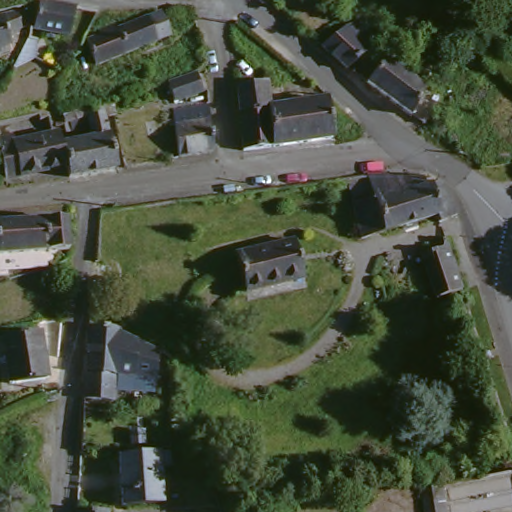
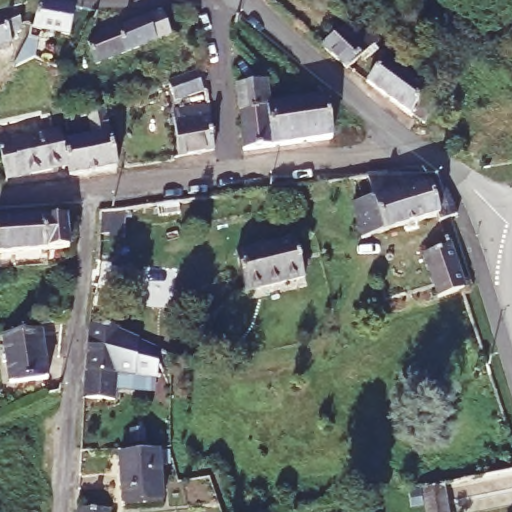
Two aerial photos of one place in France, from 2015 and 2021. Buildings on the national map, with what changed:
unchanged [(261,0),(260,1),(259,0),(261,0)]
unchanged [(24,51),(27,38),(31,39),(35,11),(72,16),(67,45),(36,40),(35,52),(24,51)]
unchanged [(17,35),(5,44),(9,52),(0,55),(0,23),(3,22),(12,17),(17,35)]
unchanged [(97,40),(112,34),(115,37),(157,20),(167,44),(95,75),(85,51),(99,45),(97,40)]
unchanged [(317,45),(340,26),(342,25),(345,27),(365,45),(342,67),(317,45)]
unchanged [(414,85),(416,82),(423,87),(431,92),(415,115),(411,118),(397,107),(396,109),(355,77),(372,54),(414,85)]
unchanged [(196,85),(202,105),(174,113),(168,92),(196,85)]
unchanged [(270,111),(324,103),(327,127),(330,142),(312,145),(240,155),(234,90),(266,86),(270,111)]
unchanged [(0,140),(11,138),(12,144),(50,138),(52,150),(60,149),(79,146),(87,145),(87,137),(71,139),(71,137),(70,130),(85,127),(84,119),(101,116),(100,112),(112,111),(113,114),(115,122),(102,124),(112,177),(93,180),(85,181),(66,184),(64,171),(54,172),(2,181),(0,172),(0,140)]
unchanged [(206,117),(210,164),(177,170),(172,122),(206,117)]
unchanged [(347,210),(370,202),(362,180),(406,180),(422,183),(423,193),(440,187),(453,220),(436,227),(433,221),(356,247),(347,210)]
unchanged [(71,250),(0,252),(0,221),(70,220),(71,250)]
unchanged [(450,296),(439,300),(435,289),(418,242),(422,241),(444,233),(465,291),(450,296)]
unchanged [(295,242),(304,280),(245,294),(236,256),(295,242)]
unchanged [(118,328),(131,337),(154,349),(152,379),(114,374),(112,409),(81,407),(82,399),(86,326),(118,328)]
unchanged [(44,382),(6,388),(0,352),(0,341),(38,335),(44,382)]
unchanged [(160,453),(162,468),(152,469),(154,508),(114,511),(111,459),(160,453)]
unchanged [(422,495),(444,492),(447,512),(425,512),(422,495)]
unchanged [(79,508),(109,511),(109,512),(78,512),(79,508)]

